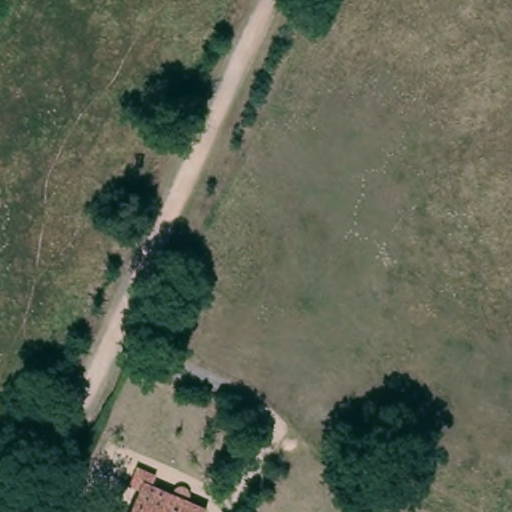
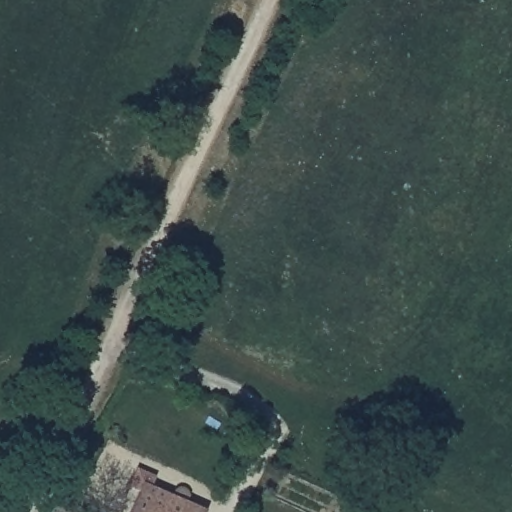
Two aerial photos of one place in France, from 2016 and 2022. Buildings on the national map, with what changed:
unchanged [(169,502),(169,496),(171,492),(175,490),(177,489),(181,491),(182,491),(185,494),(186,497),(186,501),(184,504),(180,506),(193,512),(129,512),(139,489),(156,497),(169,502)]

